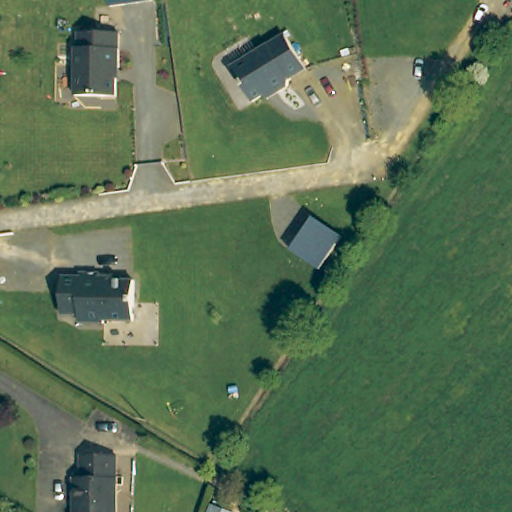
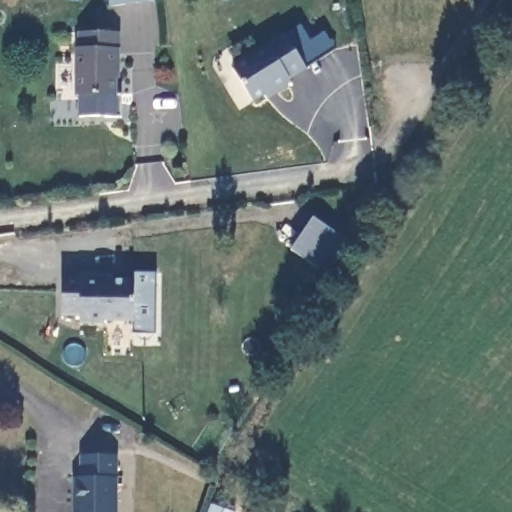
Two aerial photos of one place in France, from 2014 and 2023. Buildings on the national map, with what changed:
unchanged [(85,86),(86,39),(89,39),(89,23),(130,24),(128,59),(125,59),(125,88),(85,86)]
unchanged [(268,97),(257,104),(236,71),(288,38),(310,71),(293,81),(290,88),(280,94),(270,100),(268,97)]
unchanged [(331,259),(303,240),(325,207),(353,226),(331,259)]
unchanged [(82,275),(82,272),(100,273),(100,279),(155,278),(152,319),(104,318),(104,320),(80,319),(80,311),(63,311),(65,274),(82,275)]
unchanged [(80,479),(80,454),(115,454),(114,512),(71,512),(72,478),(80,479)]
unchanged [(231,512),(209,512),(211,505),(231,512)]

